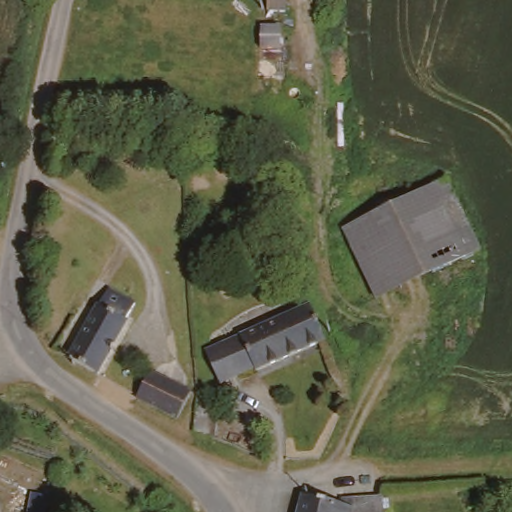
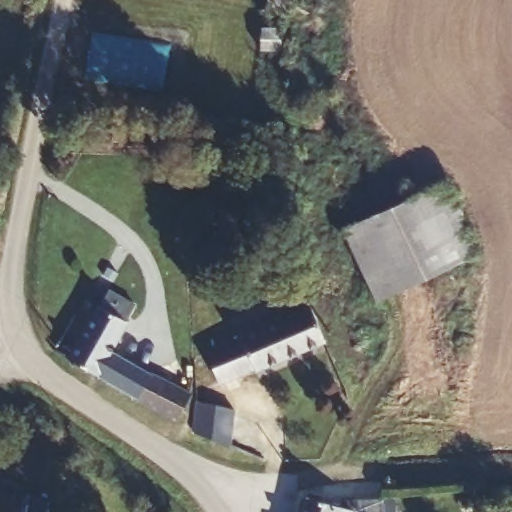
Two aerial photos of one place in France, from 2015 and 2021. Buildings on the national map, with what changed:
unchanged [(233,1),(224,0),(233,0),(233,1)]
unchanged [(437,185),(474,254),(382,305),(347,235),(437,185)]
unchanged [(96,306),(106,288),(130,302),(120,317),(124,321),(94,374),(67,357),(96,306)]
unchanged [(201,355),(302,313),(317,347),(253,370),(213,385),(201,355)]
unchanged [(187,395),(173,421),(134,399),(148,374),(187,395)]
unchanged [(194,420),(192,400),(216,408),(214,442),(192,435),(194,420)]
unchanged [(297,512),(299,506),(300,503),(330,512),(297,512)]
unchanged [(374,503),(375,512),(339,512),(339,506),(374,503)]

